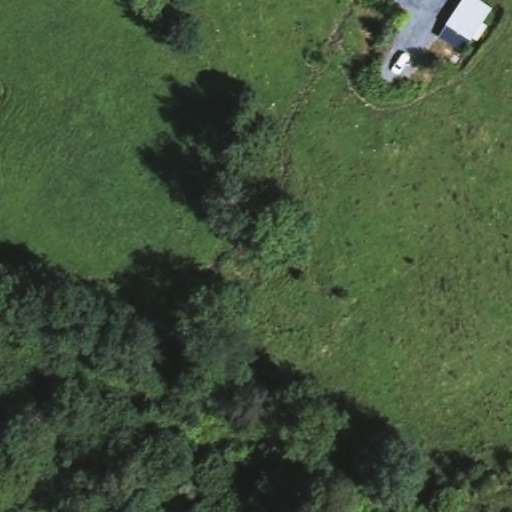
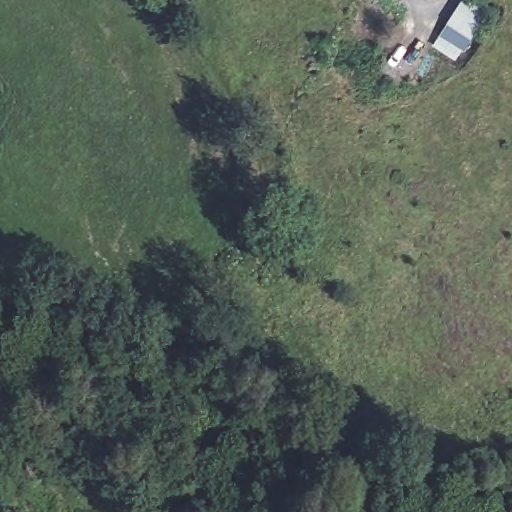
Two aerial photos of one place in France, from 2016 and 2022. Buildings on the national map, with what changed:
unchanged [(493,10),(472,42),(444,23),(461,0),(480,0),(493,10)]

